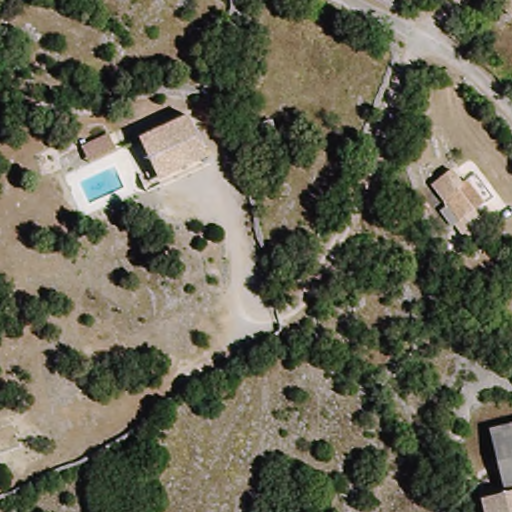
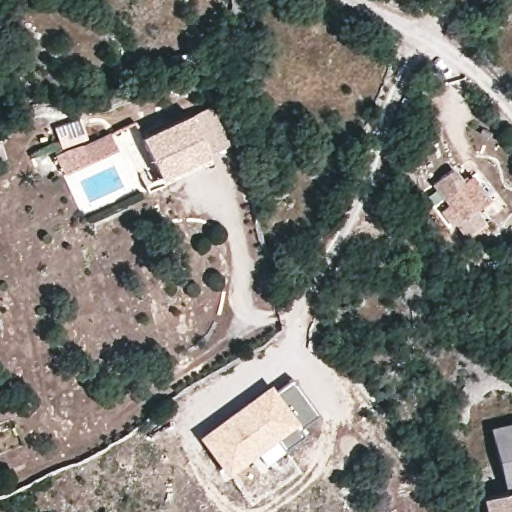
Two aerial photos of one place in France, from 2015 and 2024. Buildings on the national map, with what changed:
unchanged [(512,0),(512,20),(511,21),(490,4),(493,0),(512,0)]
unchanged [(206,163),(152,185),(134,141),(185,116),(206,163)]
new [(111,132),(118,148),(67,175),(56,158),(111,132)]
unchanged [(450,234),(445,221),(453,217),(434,184),(450,174),(461,190),(470,187),(485,209),(478,214),(480,216),(486,226),(468,239),(460,229),(450,234)]
new [(270,386),(275,392),(291,381),(316,415),(297,429),(302,437),(264,465),(257,455),(228,477),(198,437),(270,386)]
unchanged [(512,418),(512,486),(507,487),(493,422),(512,418)]
unchanged [(512,512),(488,512),(484,491),(507,487),(512,486),(512,512)]

